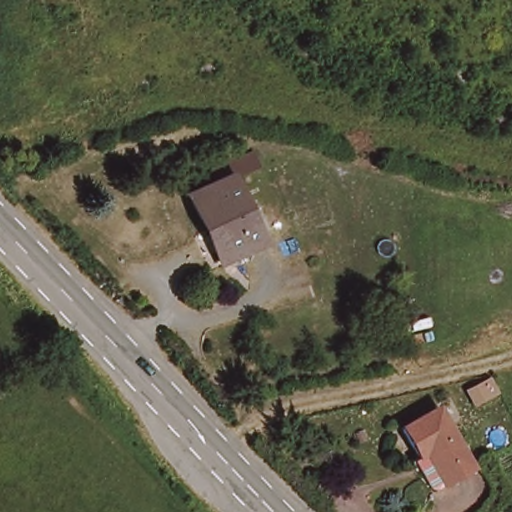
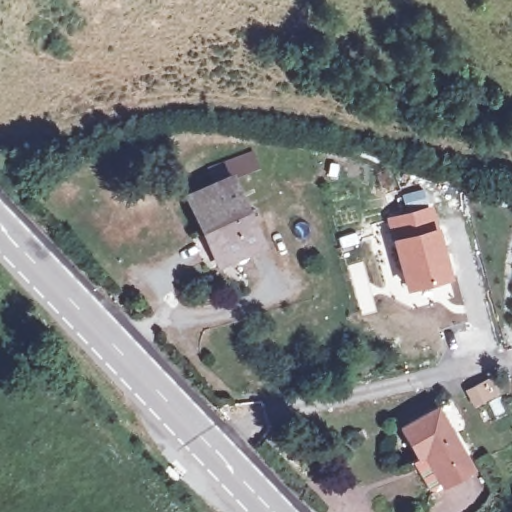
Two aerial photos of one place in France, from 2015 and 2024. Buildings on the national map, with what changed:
unchanged [(258,246),(223,260),(209,227),(201,230),(188,197),(229,180),(258,246)]
new [(434,204),(439,227),(391,239),(385,217),(434,204)]
new [(439,227),(452,280),(406,292),(391,239),(439,227)]
unchanged [(484,406),(478,387),(497,381),(504,400),(484,406)]
unchanged [(469,472),(439,487),(423,456),(414,461),(399,431),(437,411),(469,472)]

